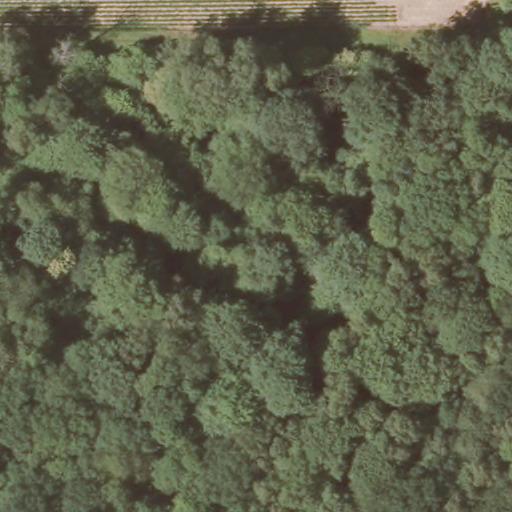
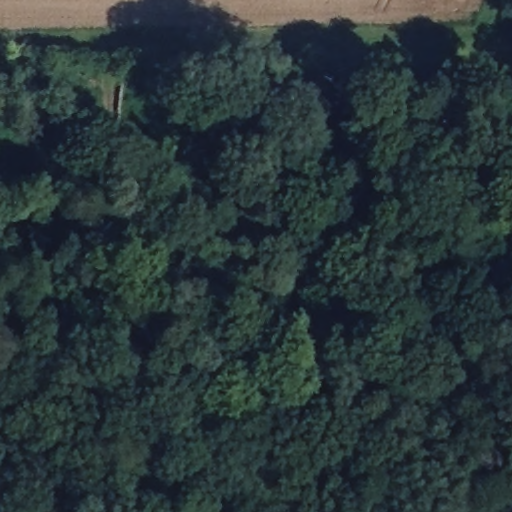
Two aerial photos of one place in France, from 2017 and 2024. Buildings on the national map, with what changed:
[]

